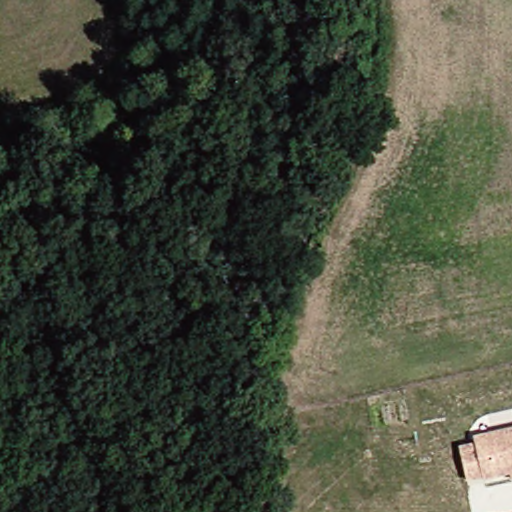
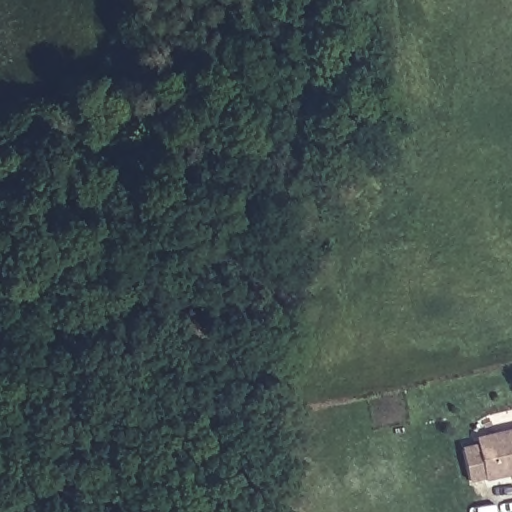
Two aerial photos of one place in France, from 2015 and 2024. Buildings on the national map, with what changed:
unchanged [(506,472),(478,478),(469,435),(512,425),(512,477),(507,478),(506,472)]

